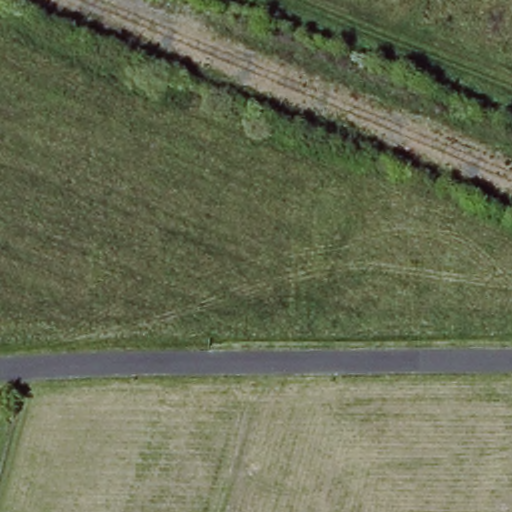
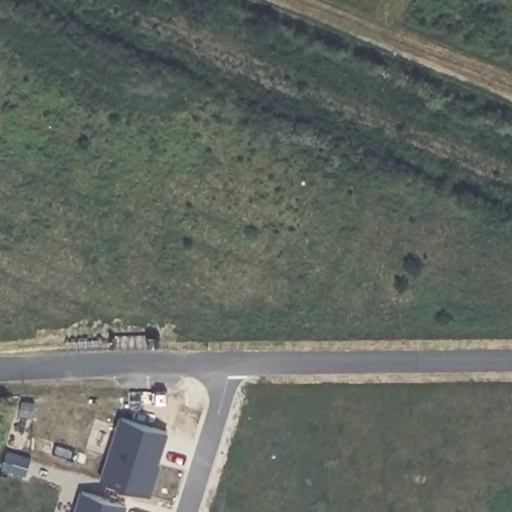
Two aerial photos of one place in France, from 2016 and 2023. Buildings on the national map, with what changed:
new [(157,462),(159,463),(149,493),(100,479),(119,416),(166,430),(157,462)]
new [(73,512),(80,490),(124,504),(121,512),(73,512)]

